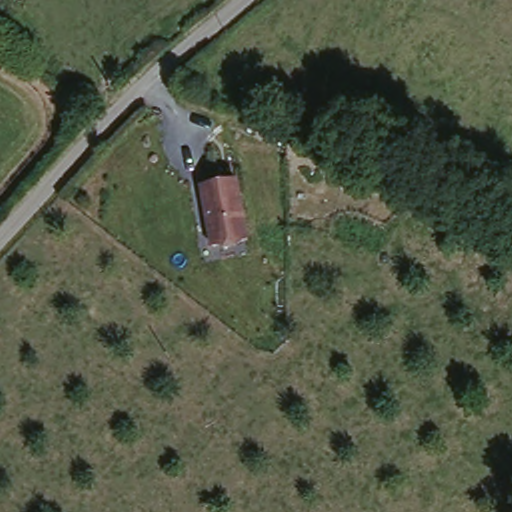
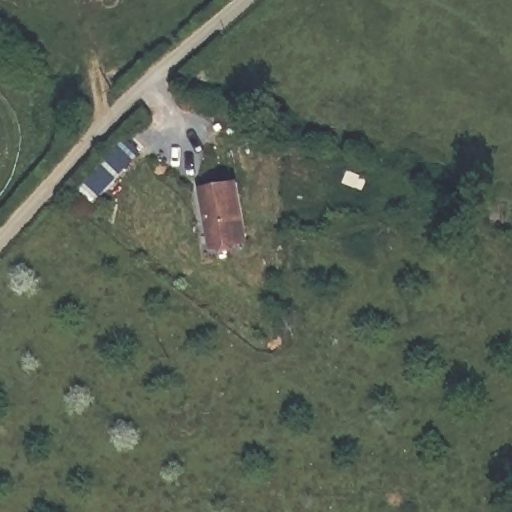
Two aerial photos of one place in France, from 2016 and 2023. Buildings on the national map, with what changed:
unchanged [(244,183),(253,243),(217,248),(209,190),(244,183)]

